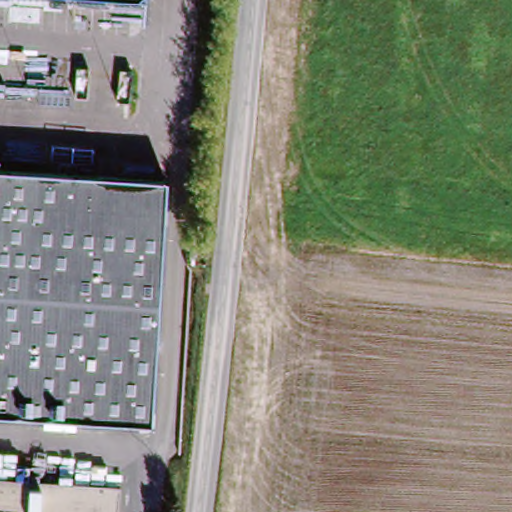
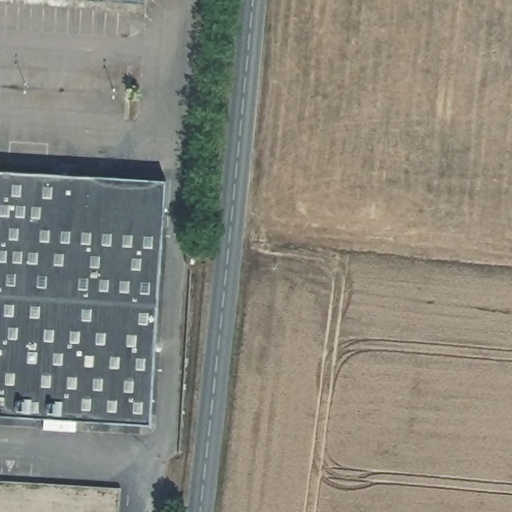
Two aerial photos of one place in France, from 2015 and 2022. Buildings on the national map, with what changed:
unchanged [(43,171),(160,175),(145,421),(0,414),(0,169),(43,171)]

